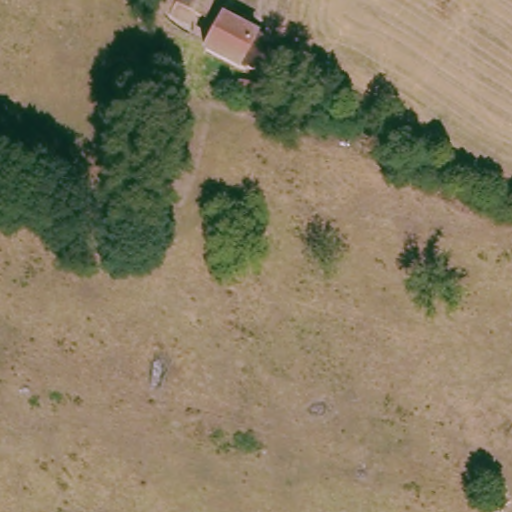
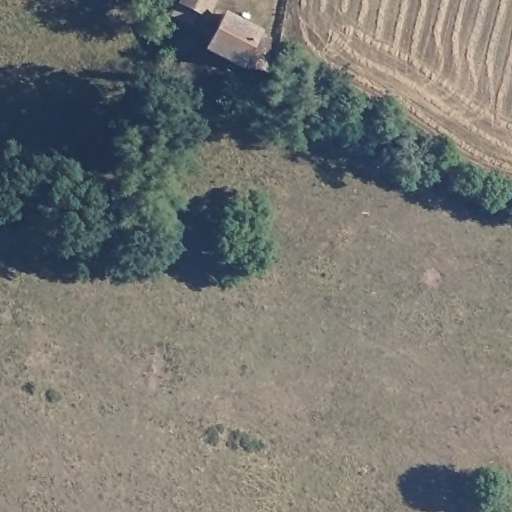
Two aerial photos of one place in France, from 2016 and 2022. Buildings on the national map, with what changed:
unchanged [(185,0),(220,0),(210,20),(197,32),(175,15),(184,5),(185,0)]
unchanged [(228,10),(268,31),(247,71),(205,52),(228,10)]
unchanged [(509,496),(507,512),(504,512),(487,509),(491,492),(509,496)]

